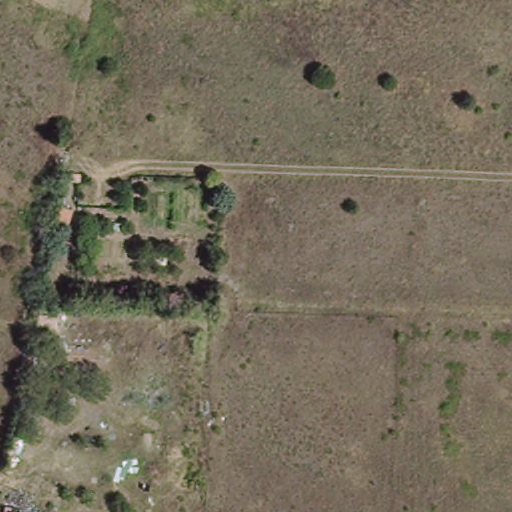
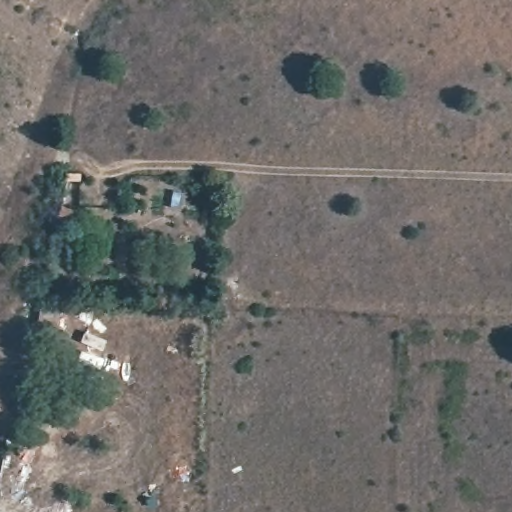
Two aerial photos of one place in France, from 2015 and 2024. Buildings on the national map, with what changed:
unchanged [(30,512),(2,512),(4,503),(31,511),(30,512)]

